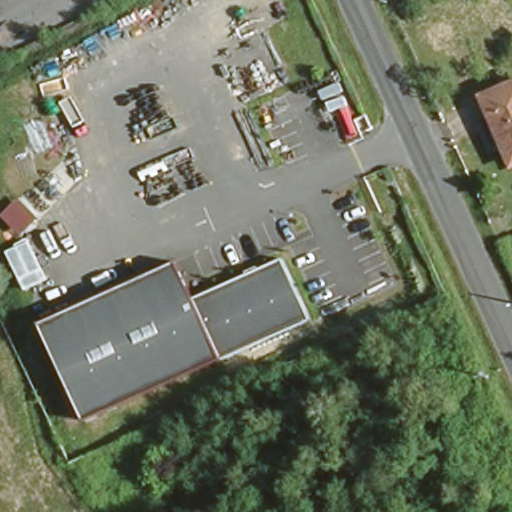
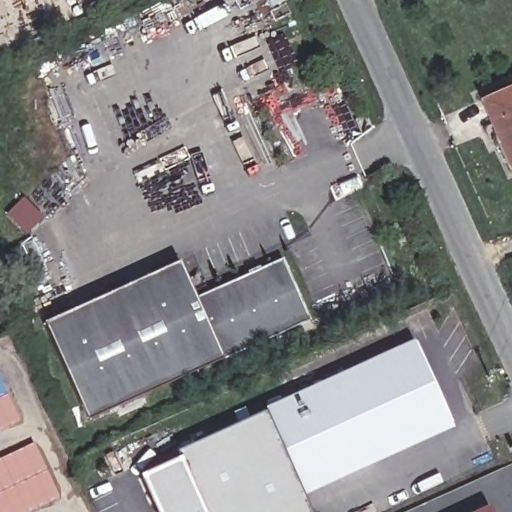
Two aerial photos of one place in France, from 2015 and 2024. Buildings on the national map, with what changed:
unchanged [(506,155),(483,92),(512,81),(512,153),(506,155)]
unchanged [(42,217),(24,235),(5,217),(22,199),(42,217)]
unchanged [(280,262),(305,323),(224,360),(87,421),(45,325),(180,264),(196,300),(280,262)]
new [(179,461),(176,453),(264,413),(262,410),(411,343),(451,429),(302,498),(308,512),(155,512),(140,480),(179,461)]
new [(0,381),(19,422),(0,431),(0,381)]
new [(59,497),(29,512),(0,512),(0,460),(34,443),(59,497)]
new [(488,508),(490,512),(481,512),(488,508)]

